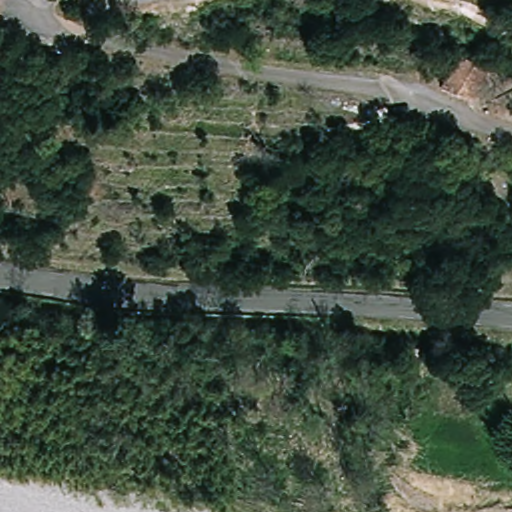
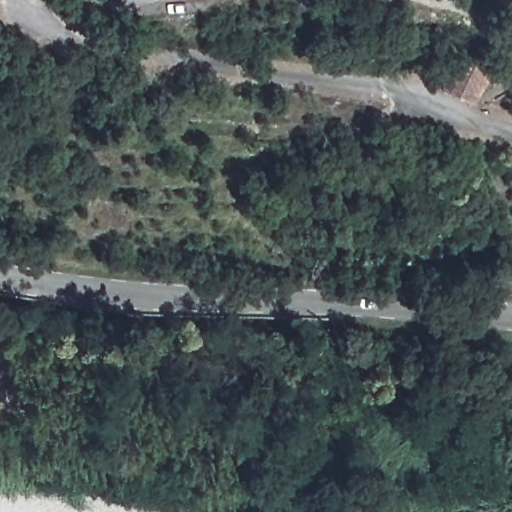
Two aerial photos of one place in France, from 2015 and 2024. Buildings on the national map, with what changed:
unchanged [(484,71),(471,100),(444,88),(460,60),(484,71)]
unchanged [(373,259),(393,260),(392,282),(371,280),(373,259)]

